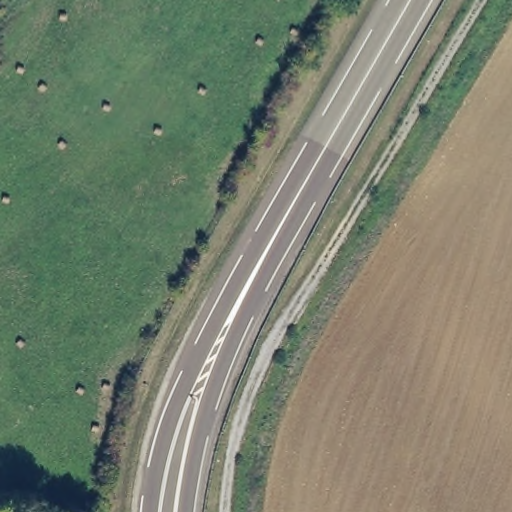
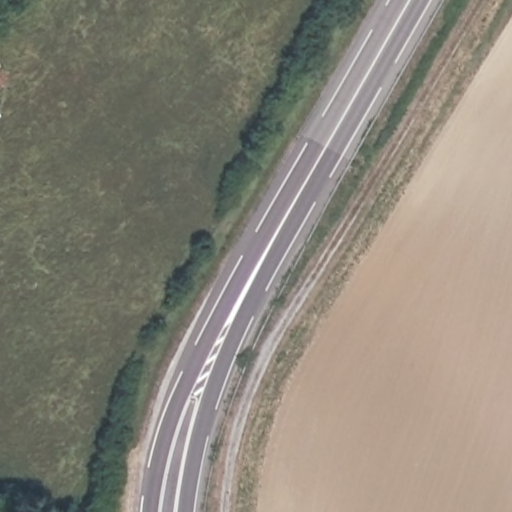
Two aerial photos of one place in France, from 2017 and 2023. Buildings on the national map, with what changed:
unchanged [(0,66),(0,52),(2,65),(0,66)]

